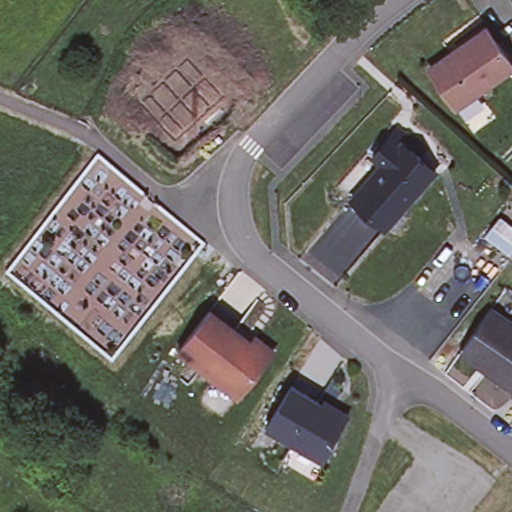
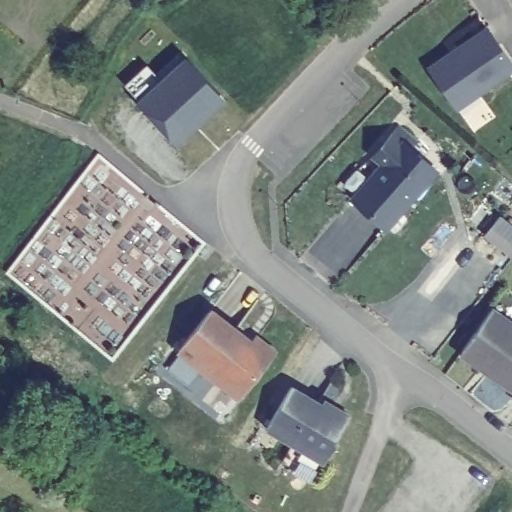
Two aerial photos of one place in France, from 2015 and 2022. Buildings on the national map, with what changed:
unchanged [(509,66),(453,105),(429,74),(424,67),(452,47),(481,27),(509,66)]
new [(162,78),(186,57),(226,101),(177,146),(136,101),(126,85),(148,65),(162,78)]
unchanged [(404,134),(420,148),(418,151),(442,172),(391,230),(359,201),(388,169),(379,161),(404,134)]
unchanged [(512,221),(512,248),(509,251),(483,230),(499,210),(512,221)]
unchanged [(494,308),(512,322),(512,391),(486,372),(490,368),(463,346),(494,308)]
unchanged [(208,310),(251,343),(256,336),(274,349),(238,395),(178,349),(208,310)]
unchanged [(325,400),(349,414),(347,418),(335,438),(336,443),(324,462),(266,427),(291,385),(323,404),(325,400)]

